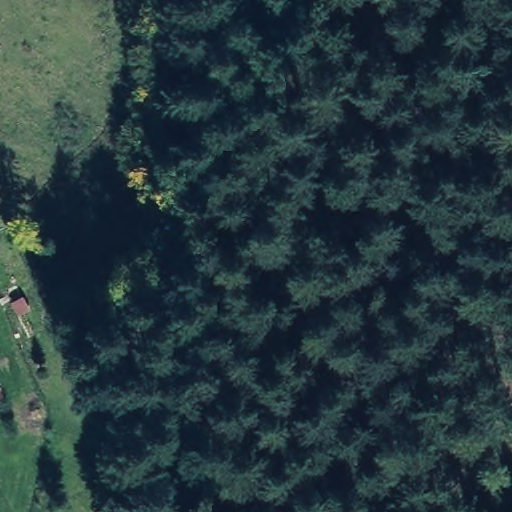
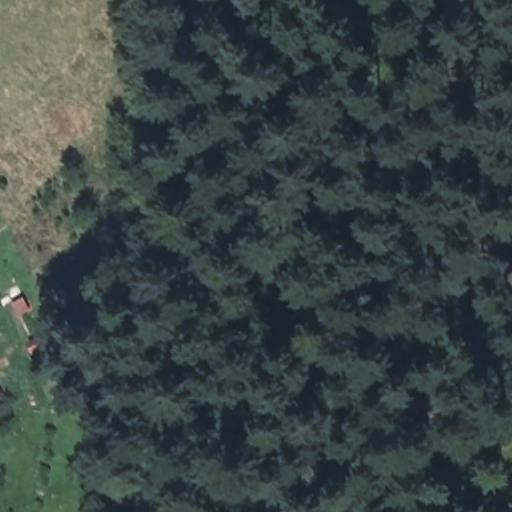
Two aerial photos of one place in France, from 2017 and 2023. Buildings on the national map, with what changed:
unchanged [(0,395),(0,387),(3,394),(0,395)]

